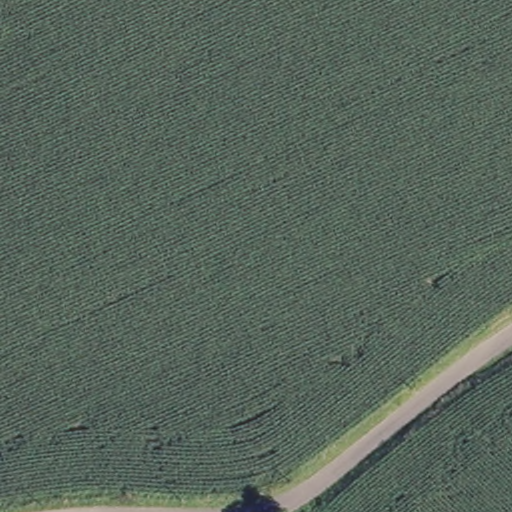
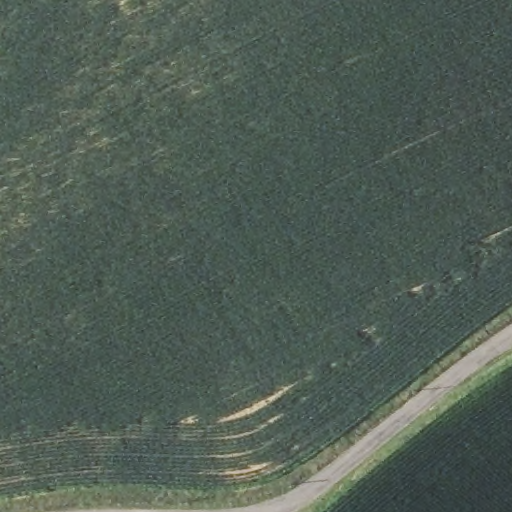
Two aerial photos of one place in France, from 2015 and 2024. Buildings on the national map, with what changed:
[]

